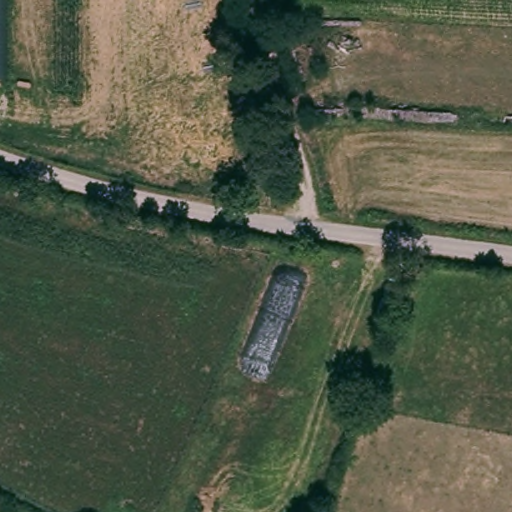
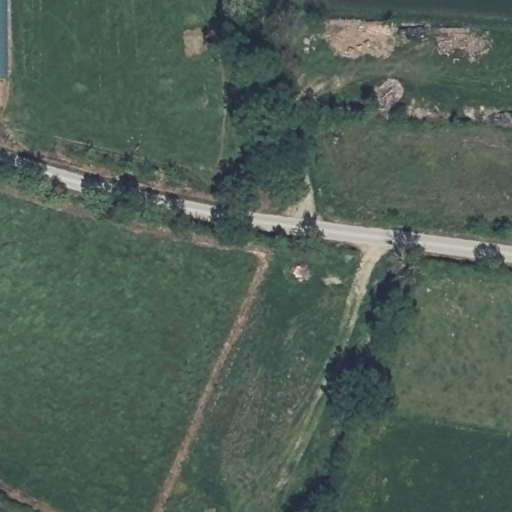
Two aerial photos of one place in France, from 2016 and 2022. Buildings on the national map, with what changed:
unchanged [(6,0),(7,79),(0,78),(0,0),(6,0)]

